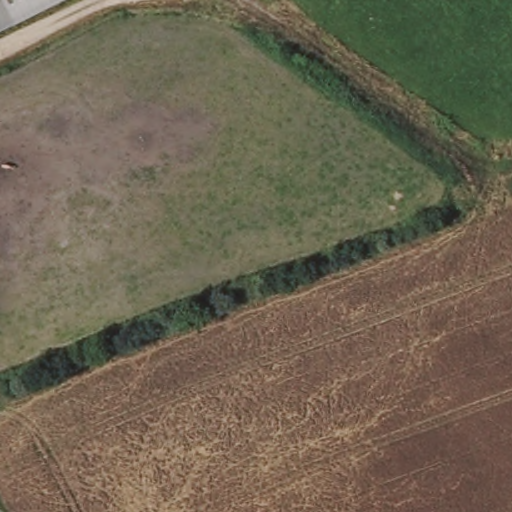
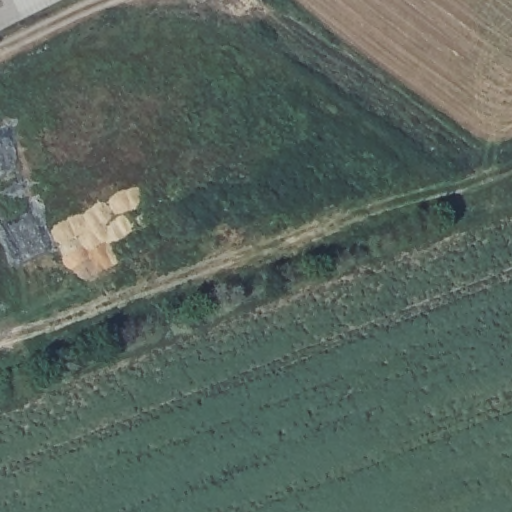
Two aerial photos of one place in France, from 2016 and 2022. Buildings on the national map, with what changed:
unchanged [(0,0),(57,0),(0,28),(0,0)]

